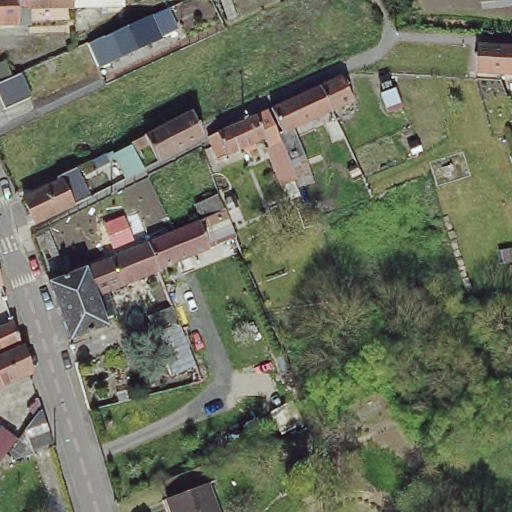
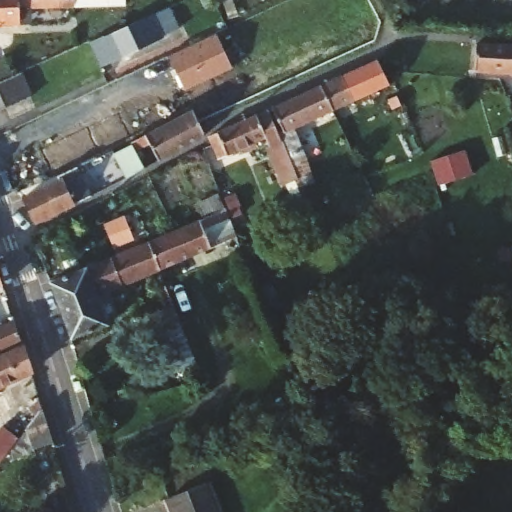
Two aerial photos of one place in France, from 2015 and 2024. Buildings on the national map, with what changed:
unchanged [(21,26),(0,27),(0,0),(21,0),(21,9),(21,26)]
unchanged [(21,9),(21,0),(124,0),(124,8),(21,9)]
unchanged [(128,25),(163,8),(174,31),(138,49),(128,25)]
unchanged [(128,25),(138,49),(101,66),(90,43),(128,25)]
new [(217,34),(234,69),(185,92),(168,56),(217,34)]
unchanged [(477,44),(512,46),(512,72),(475,70),(477,44)]
unchanged [(31,94),(8,105),(0,89),(0,63),(12,58),(19,72),(21,71),(31,94)]
unchanged [(321,83),(342,72),(353,97),(332,107),(293,125),(304,152),(291,158),(279,131),(283,130),(272,105),(299,93),(321,83)]
unchanged [(300,190),(291,193),(285,178),(281,179),(267,146),(271,144),(267,135),(219,156),(209,134),(263,109),(268,106),(300,190)]
unchanged [(122,146),(123,145),(131,141),(193,108),(199,120),(200,121),(204,130),(199,135),(189,141),(188,142),(159,156),(151,141),(139,146),(144,156),(141,159),(144,165),(126,175),(117,156),(112,159),(108,151),(114,149),(122,146)]
new [(462,154),(469,178),(435,188),(428,164),(462,154)]
unchanged [(59,182),(58,179),(78,170),(91,198),(72,207),(63,211),(35,224),(24,199),(59,182)]
unchanged [(191,196),(216,185),(224,204),(199,214),(191,196)]
unchanged [(150,248),(147,239),(224,205),(226,211),(235,232),(157,266),(150,248)]
new [(123,217),(133,239),(119,245),(113,248),(103,226),(109,223),(123,217)]
unchanged [(147,239),(150,248),(157,266),(158,268),(109,286),(118,311),(105,317),(106,322),(71,336),(51,286),(49,279),(147,239)]
new [(500,266),(496,251),(510,248),(512,258),(512,262),(500,266)]
unchanged [(2,283),(0,283),(0,278),(2,283)]
unchanged [(179,304),(201,361),(170,372),(147,310),(177,299),(179,304)]
unchanged [(14,320),(21,342),(31,372),(0,386),(0,325),(14,320)]
unchanged [(17,444),(35,420),(28,413),(38,400),(42,411),(53,446),(35,452),(36,456),(8,466),(3,461),(0,464),(0,432),(1,431),(17,444)]
unchanged [(172,496),(203,484),(213,512),(178,512),(172,496)]

